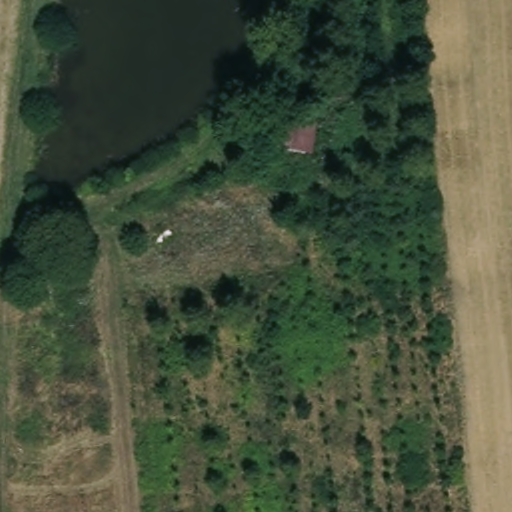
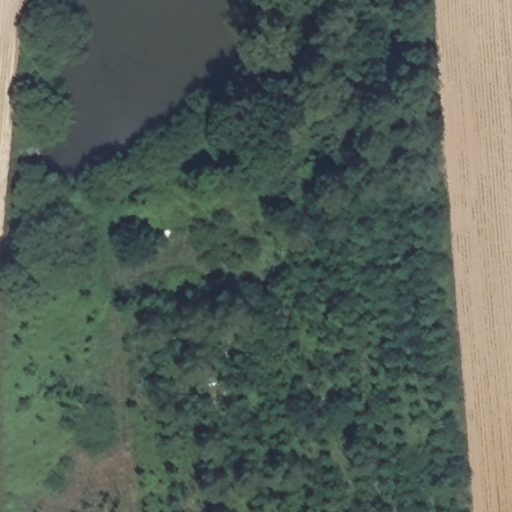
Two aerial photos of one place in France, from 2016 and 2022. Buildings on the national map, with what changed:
unchanged [(286,146),(288,135),(291,114),(314,115),(313,125),(310,147),(286,146)]

